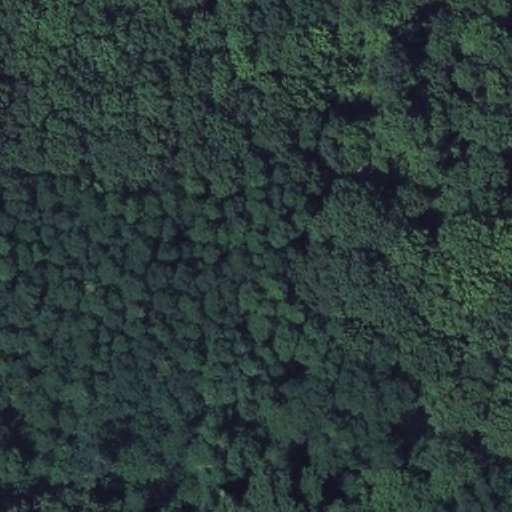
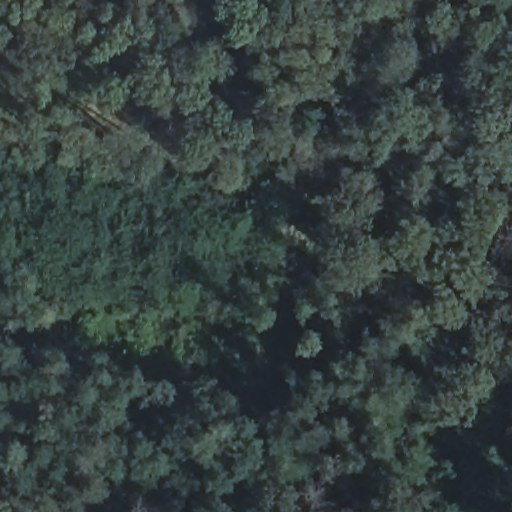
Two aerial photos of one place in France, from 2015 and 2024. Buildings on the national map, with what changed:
[]

